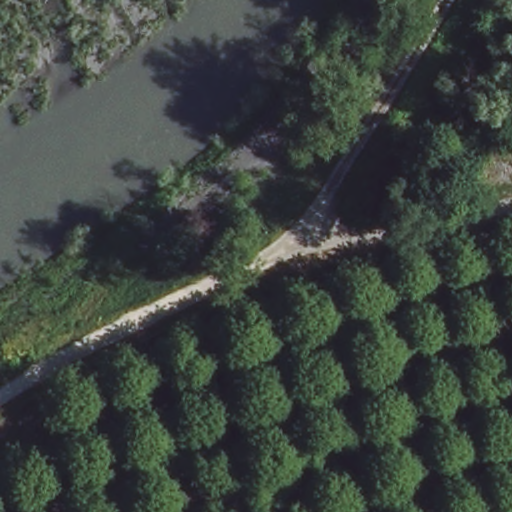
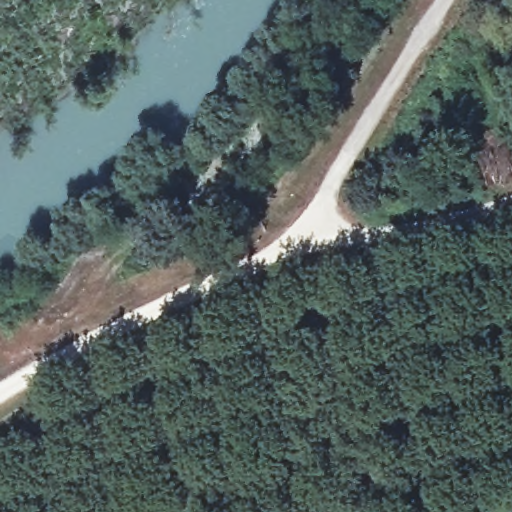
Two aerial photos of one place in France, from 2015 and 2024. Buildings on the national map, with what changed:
unchanged [(448,189),(445,171),(465,166),(468,185),(448,189)]

